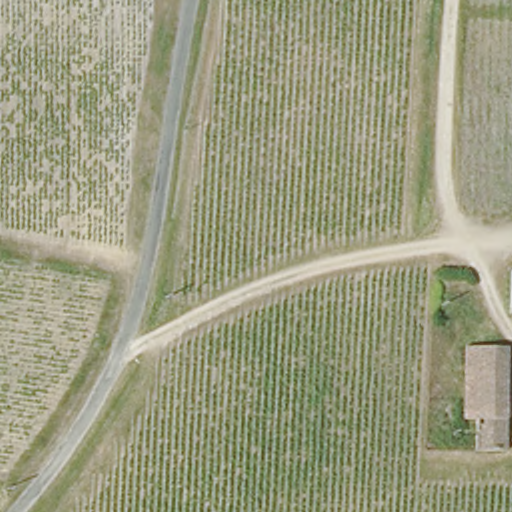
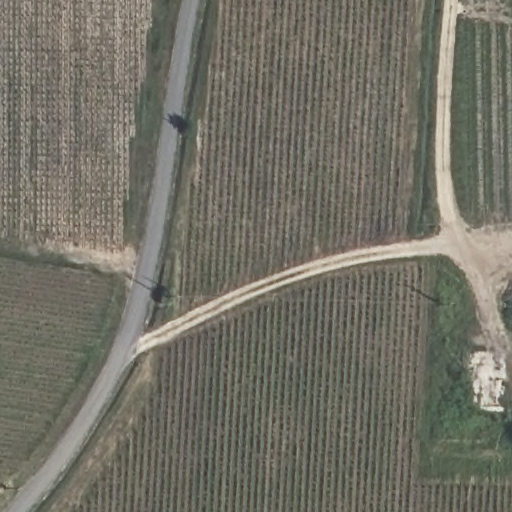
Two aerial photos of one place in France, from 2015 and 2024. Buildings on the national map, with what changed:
demolished [(512,315),(510,315),(508,267),(512,268),(512,315)]
demolished [(507,348),(505,450),(478,450),(479,419),(464,419),(464,347),(507,348)]

